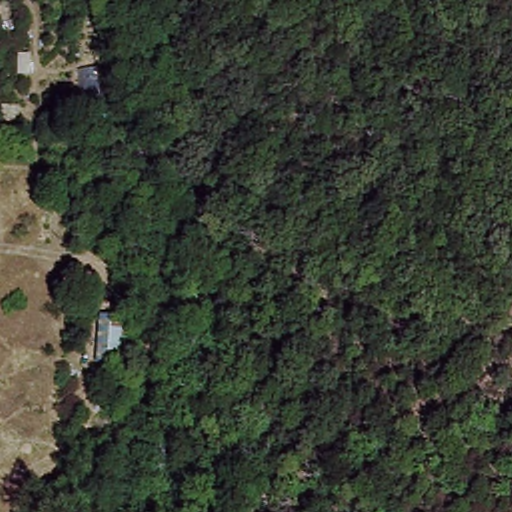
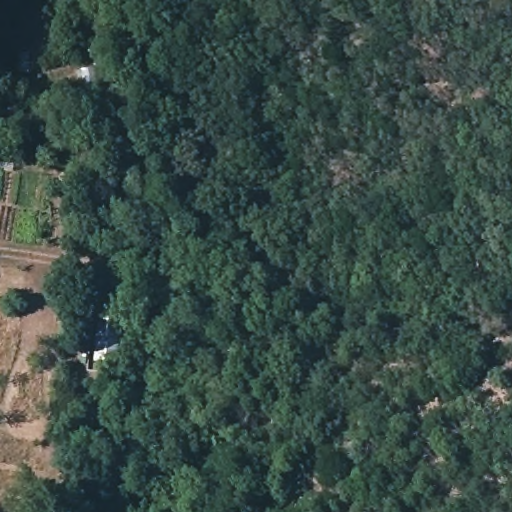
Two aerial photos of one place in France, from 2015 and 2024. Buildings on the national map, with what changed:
unchanged [(101,312),(125,311),(123,366),(98,361),(101,312)]

